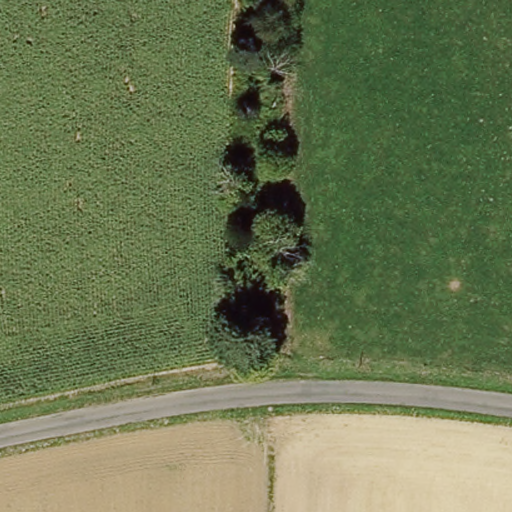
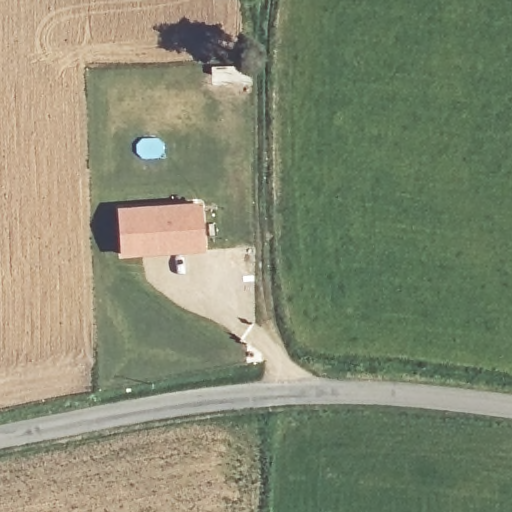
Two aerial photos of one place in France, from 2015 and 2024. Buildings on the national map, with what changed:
new [(207,250),(120,258),(116,209),(202,202),(207,250)]

